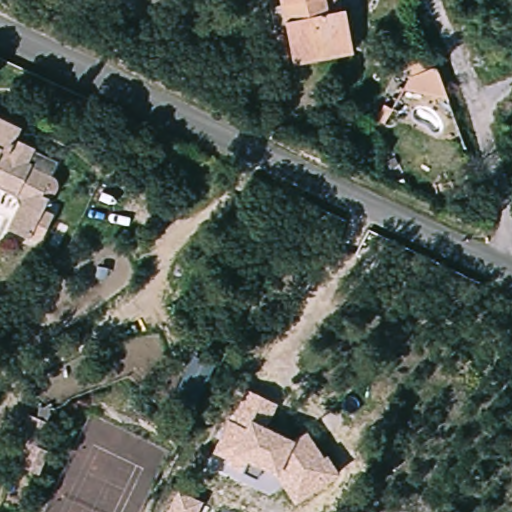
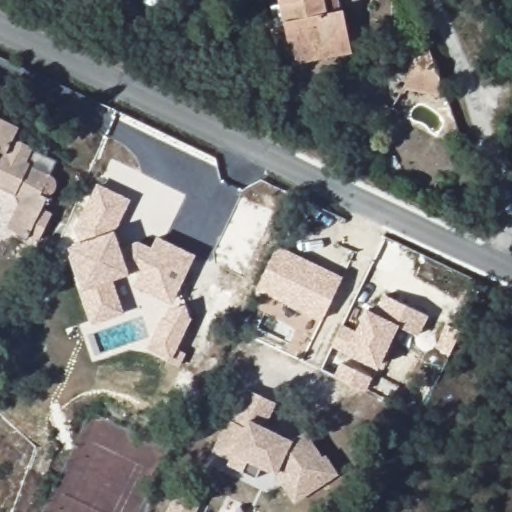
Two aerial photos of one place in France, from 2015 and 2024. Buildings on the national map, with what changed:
unchanged [(295,64),(292,51),(278,53),(276,39),(286,36),(278,0),(326,0),(328,7),(344,5),(353,38),(355,52),(295,64)]
unchanged [(403,90),(410,75),(405,62),(420,58),(416,44),(426,41),(450,101),(403,90)]
unchanged [(15,141),(60,158),(52,174),(58,185),(49,210),(55,213),(43,244),(8,228),(21,200),(0,191),(0,120),(20,129),(15,141)]
new [(79,242),(75,229),(97,183),(131,198),(115,229),(120,243),(136,239),(151,245),(158,235),(196,254),(171,304),(133,285),(138,273),(129,267),(131,272),(113,279),(125,312),(92,323),(79,287),(81,286),(68,254),(71,253),(68,245),(79,242)]
new [(343,276),(321,320),(256,289),(276,245),(343,276)]
new [(356,329),(367,308),(375,312),(385,294),(429,314),(419,334),(400,325),(379,368),(346,353),(331,346),(341,324),(356,329)]
new [(186,303),(193,318),(178,348),(186,353),(180,366),(167,361),(168,358),(146,348),(163,316),(165,317),(169,308),(186,303)]
new [(195,355),(213,365),(193,406),(175,397),(195,355)]
unchanged [(269,429),(292,440),(306,431),(321,456),(327,453),(339,473),(294,503),(275,474),(260,469),(255,478),(242,472),(230,468),(230,461),(211,454),(228,421),(244,391),(276,403),(269,429)]
unchanged [(52,426),(45,445),(55,448),(43,476),(21,467),(29,447),(15,441),(26,413),(52,426)]
unchanged [(166,512),(176,489),(202,501),(197,512),(166,512)]

